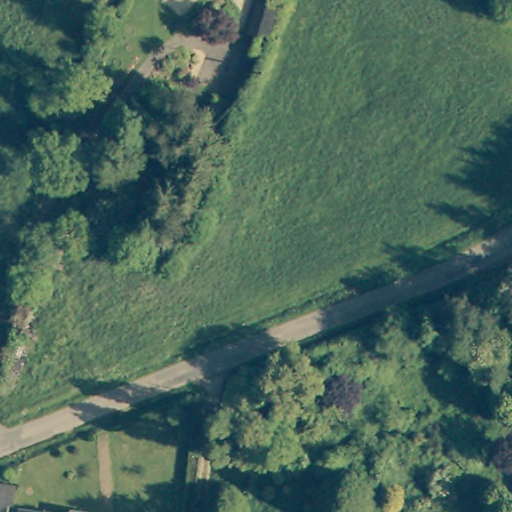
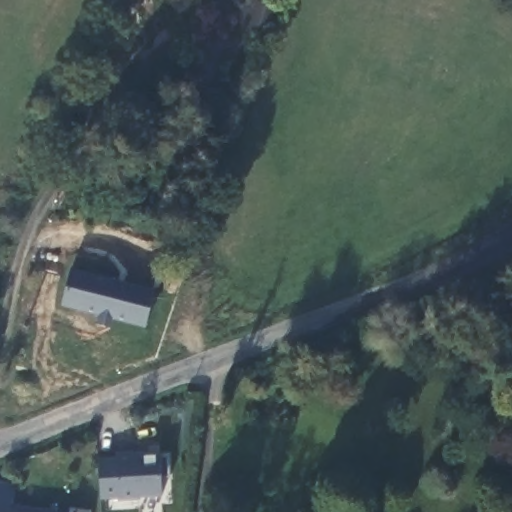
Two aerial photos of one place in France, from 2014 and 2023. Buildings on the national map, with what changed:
unchanged [(277,4),(267,38),(246,31),(256,0),(262,0),(277,4)]
new [(72,268),(154,289),(145,325),(62,305),(72,268)]
new [(97,456),(163,452),(166,495),(100,501),(97,456)]
unchanged [(12,512),(0,512),(0,478),(16,481),(12,512)]
unchanged [(58,512),(20,512),(21,505),(58,512)]
unchanged [(94,509),(93,512),(74,512),(76,506),(94,509)]

